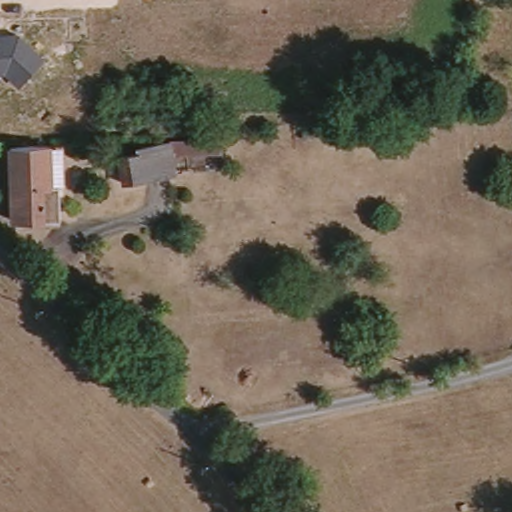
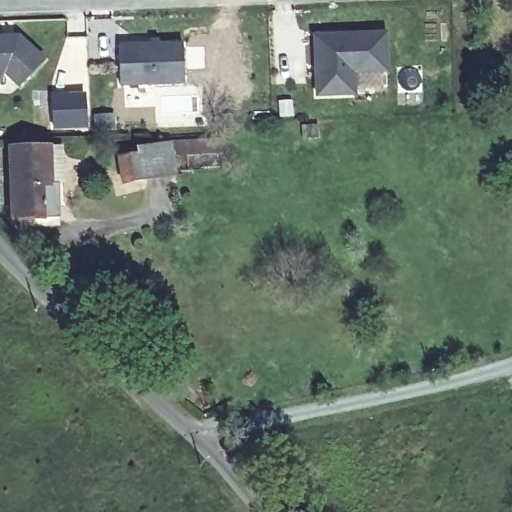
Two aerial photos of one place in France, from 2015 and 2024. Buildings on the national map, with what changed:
new [(312,35),(387,30),(389,73),(355,75),(356,96),(315,99),(312,35)]
unchanged [(19,34),(46,57),(21,85),(6,73),(0,74),(0,34),(19,34)]
unchanged [(122,86),(119,43),(182,42),(184,84),(122,86)]
new [(86,90),(88,128),(53,130),(50,92),(86,90)]
unchanged [(176,160),(177,176),(120,186),(116,158),(138,156),(137,149),(170,140),(221,140),(223,158),(176,160)]
unchanged [(7,149),(48,147),(51,187),(60,186),(62,222),(12,225),(7,149)]

